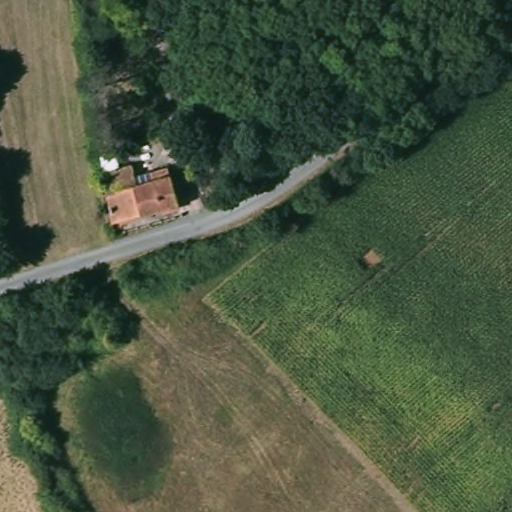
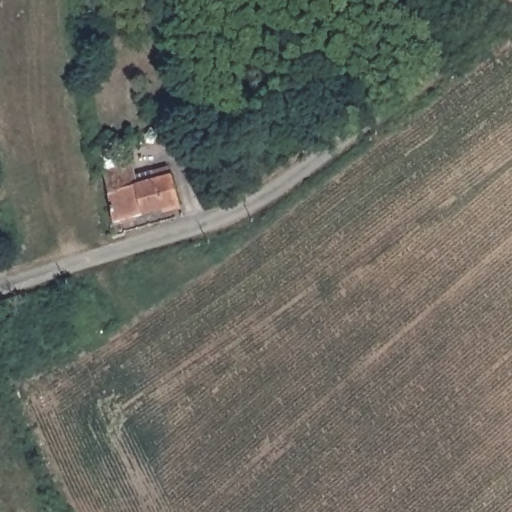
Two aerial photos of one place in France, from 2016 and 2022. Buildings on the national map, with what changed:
unchanged [(137,183),(154,178),(172,173),(182,210),(112,230),(105,180),(102,165),(118,161),(122,175),(135,172),(137,183)]
unchanged [(96,313),(89,291),(111,284),(118,305),(96,313)]

